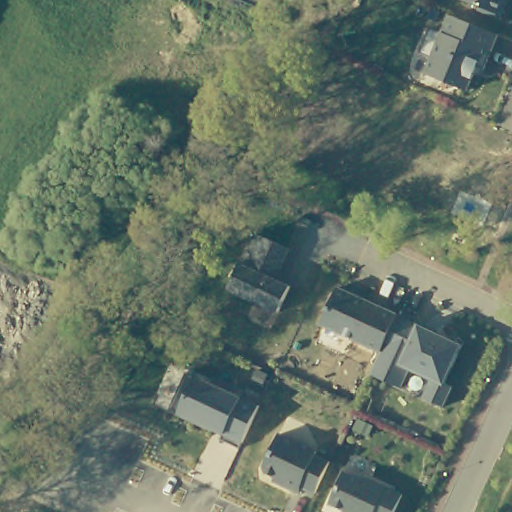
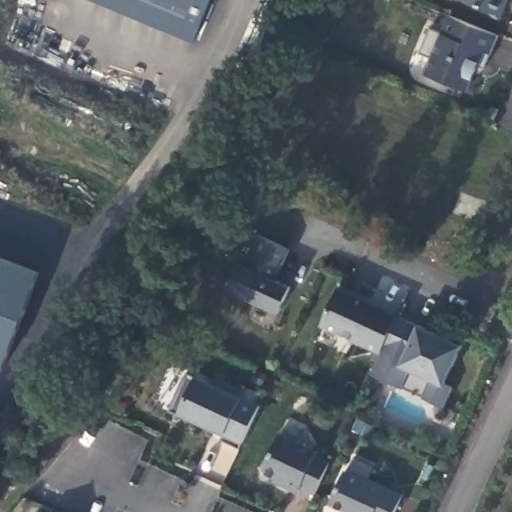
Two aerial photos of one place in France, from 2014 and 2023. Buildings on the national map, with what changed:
new [(194,42),(89,0),(211,0),(194,42)]
unchanged [(499,19),(478,11),(479,7),(462,0),(506,0),(499,19)]
unchanged [(498,35),(484,69),(477,66),(467,91),(425,74),(432,59),(419,54),(429,28),(442,33),(449,16),(498,35)]
unchanged [(228,290),(240,264),(244,266),(258,235),(289,249),(274,280),(289,287),(278,312),(228,290)]
new [(0,363),(0,255),(41,271),(5,365),(0,363)]
unchanged [(338,288),(369,302),(367,307),(379,312),(381,308),(397,316),(380,352),(320,325),(338,288)]
unchanged [(462,345),(444,383),(452,387),(443,407),(423,398),(432,380),(409,369),(401,388),(370,374),(380,352),(397,316),(462,345)]
unchanged [(219,440),(224,429),(215,425),(213,432),(168,411),(186,372),(213,384),(215,377),(244,391),(242,397),(259,406),(250,426),(239,449),(219,440)]
unchanged [(317,452),(315,456),(329,462),(315,494),(300,487),(298,492),(282,486),(284,482),(265,473),(263,467),(279,434),(317,452)]
unchanged [(359,478),(361,476),(395,492),(386,512),(345,512),(346,511),(329,503),(344,472),(359,478)]

